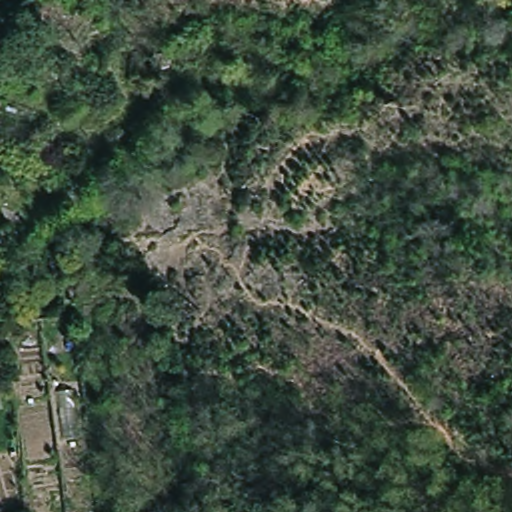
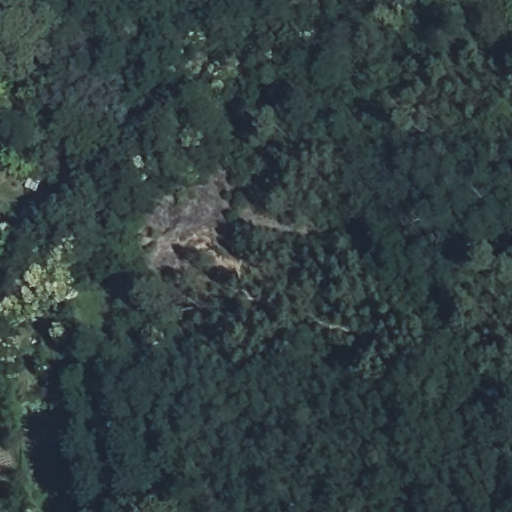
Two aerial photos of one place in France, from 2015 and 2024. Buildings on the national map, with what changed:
unchanged [(163,92),(182,111),(172,120),(154,101),(163,92)]
unchanged [(59,169),(42,165),(44,157),(61,161),(59,169)]

